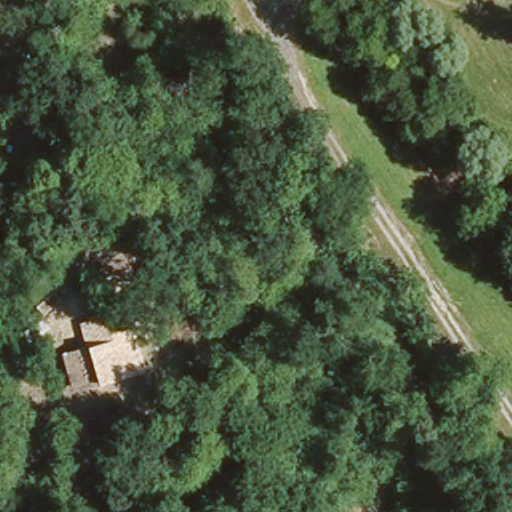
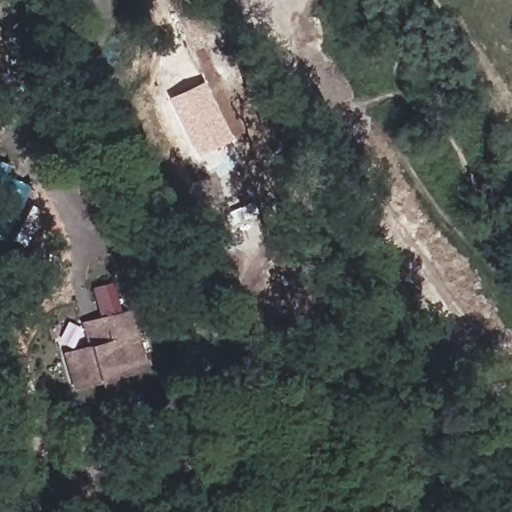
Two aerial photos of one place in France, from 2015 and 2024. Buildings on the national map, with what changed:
new [(201,80),(229,138),(197,155),(168,98),(201,80)]
unchanged [(61,350),(88,343),(78,317),(128,304),(145,368),(99,383),(74,388),(61,350)]

